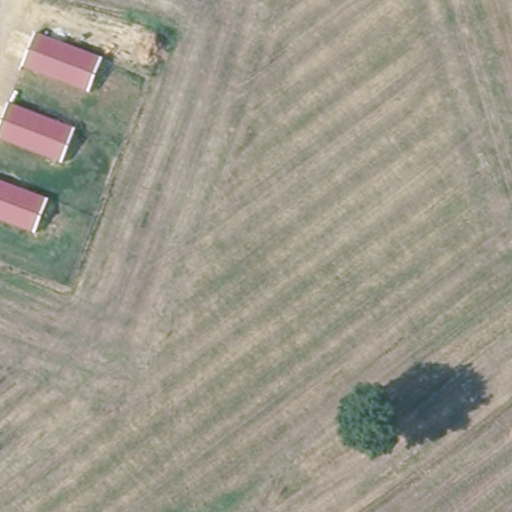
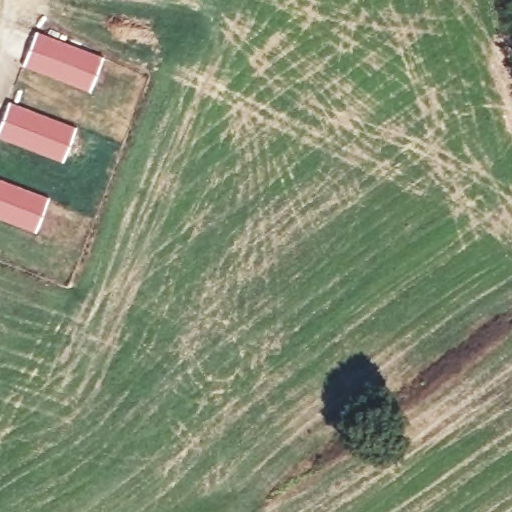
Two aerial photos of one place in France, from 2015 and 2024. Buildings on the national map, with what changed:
unchanged [(103,59),(89,92),(21,64),(36,30),(103,59)]
unchanged [(64,162),(0,135),(0,127),(11,100),(78,129),(64,162)]
unchanged [(35,231),(0,217),(0,178),(49,198),(35,231)]

